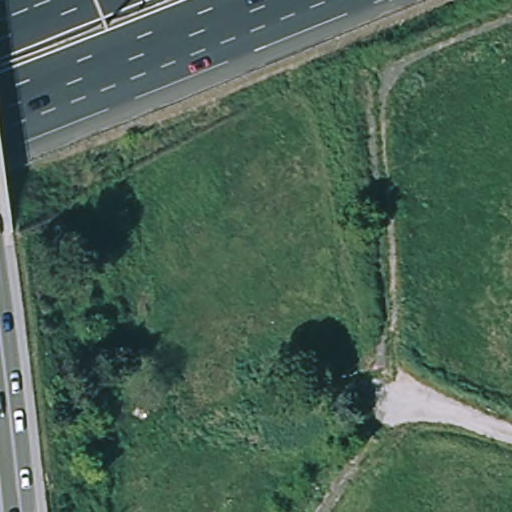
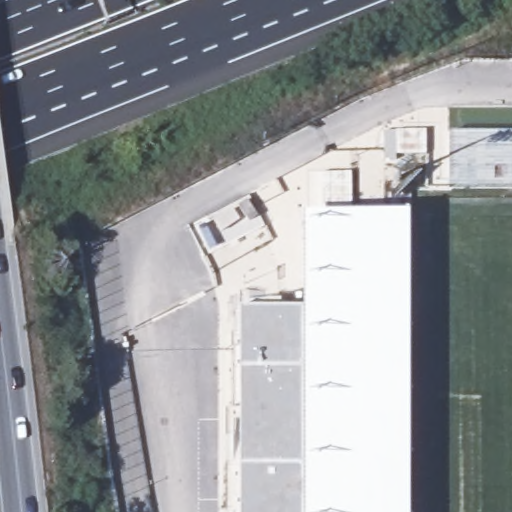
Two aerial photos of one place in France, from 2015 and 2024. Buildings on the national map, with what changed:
new [(512,183),(450,183),(450,130),(512,131),(512,183)]
new [(304,307),(305,213),(410,211),(410,512),(242,512),(241,308),(304,307)]

